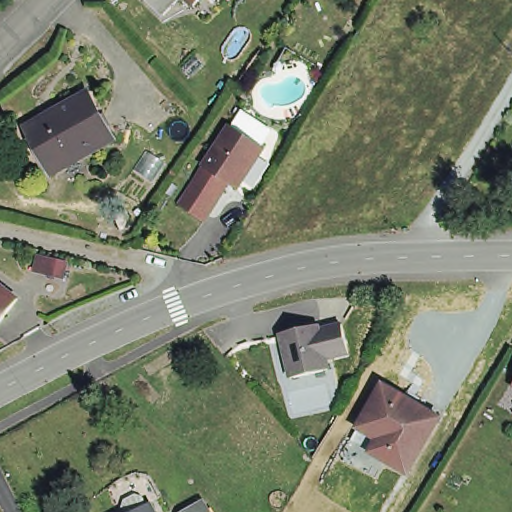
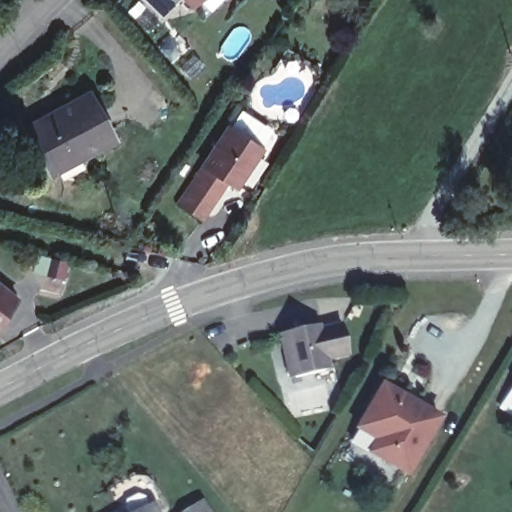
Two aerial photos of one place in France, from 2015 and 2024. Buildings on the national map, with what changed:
unchanged [(85,96),(109,141),(50,174),(25,129),(85,96)]
unchanged [(230,114),(262,135),(234,176),(227,172),(202,156),(230,114)]
unchanged [(202,156),(227,172),(202,209),(178,192),(202,156)]
unchanged [(16,295),(0,315),(0,282),(16,295)]
unchanged [(349,350),(328,356),(331,367),(293,379),(278,337),(301,331),(303,335),(341,322),(349,350)]
unchanged [(378,442),(359,431),(383,388),(439,420),(408,475),(388,463),(371,454),(378,442)]
unchanged [(181,506),(197,496),(207,512),(184,512),(181,506)]
unchanged [(123,512),(133,506),(141,509),(143,512),(123,512)]

